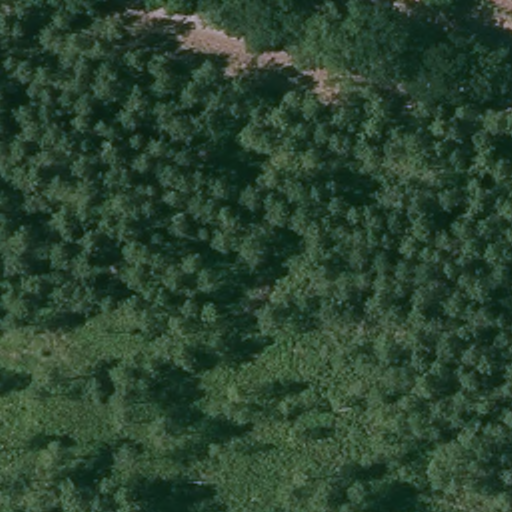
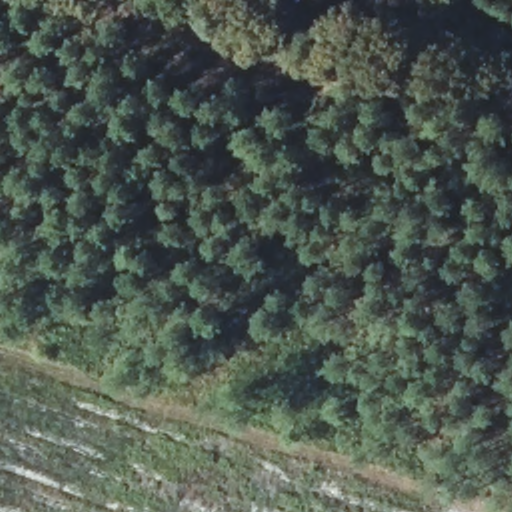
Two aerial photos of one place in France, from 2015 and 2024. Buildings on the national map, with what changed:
[]

